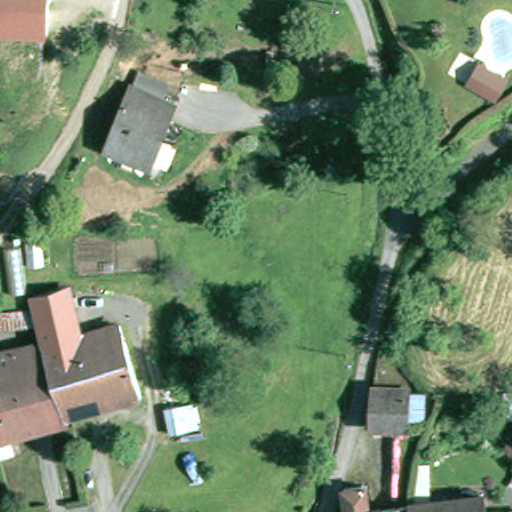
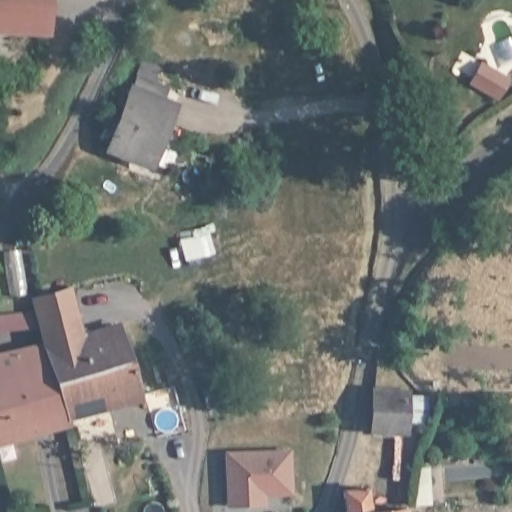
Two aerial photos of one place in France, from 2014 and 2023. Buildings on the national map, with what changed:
unchanged [(0,28),(0,0),(49,0),(47,31),(0,28)]
unchanged [(512,80),(512,104),(499,99),(507,79),(512,80)]
unchanged [(175,109),(169,125),(164,123),(148,162),(153,164),(151,167),(109,149),(132,91),(175,109)]
unchanged [(74,339),(45,348),(32,300),(61,294),(74,339)]
unchanged [(52,377),(45,348),(74,339),(117,327),(137,399),(64,419),(52,377)]
unchanged [(0,441),(0,357),(45,348),(52,377),(64,419),(66,424),(0,441)]
unchanged [(418,399),(413,437),(379,431),(384,393),(418,398),(418,399)]
new [(290,448),(291,494),(265,494),(265,505),(226,507),(223,450),(290,448)]
unchanged [(343,491),(369,490),(372,512),(345,512),(343,491)]
unchanged [(485,504),(486,512),(416,512),(416,509),(485,504)]
unchanged [(404,511),(404,512),(394,512),(404,511)]

